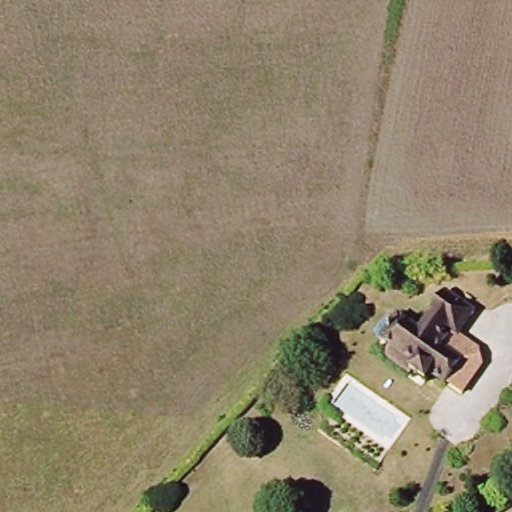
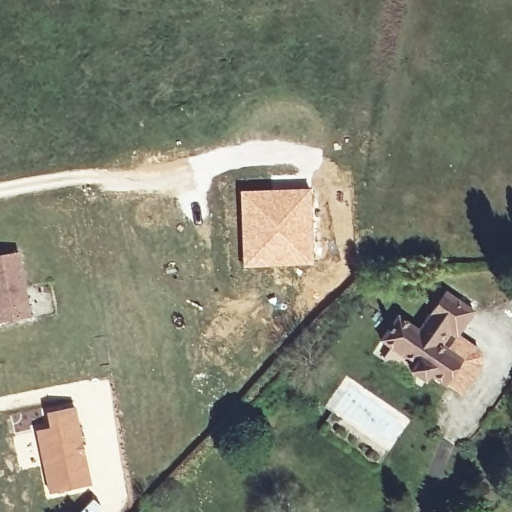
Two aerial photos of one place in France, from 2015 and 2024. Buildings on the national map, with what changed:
new [(310,187),(312,263),(242,267),(239,189),(310,187)]
new [(22,251),(34,317),(0,323),(0,255),(22,251)]
unchanged [(388,342),(402,319),(422,331),(444,298),(474,317),(458,342),(455,340),(448,351),(467,363),(452,387),(423,368),(419,375),(392,359),(399,348),(388,342)]
new [(48,427),(45,411),(75,405),(91,483),(47,493),(34,430),(48,427)]
new [(104,511),(103,512),(78,512),(92,498),(104,511)]

